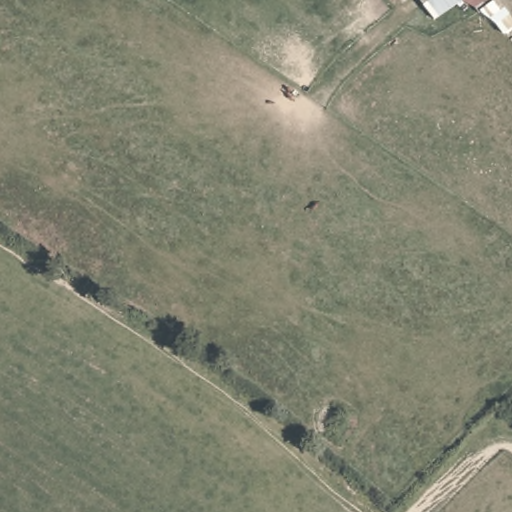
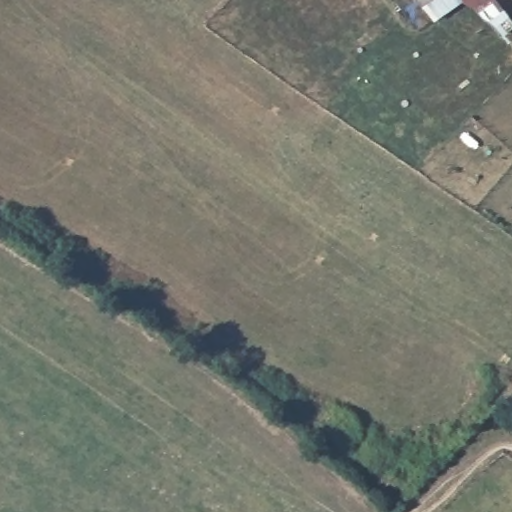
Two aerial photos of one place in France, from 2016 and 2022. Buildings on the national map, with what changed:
unchanged [(423,11),(415,0),(438,0),(423,11)]
unchanged [(471,13),(461,0),(487,0),(471,13)]

